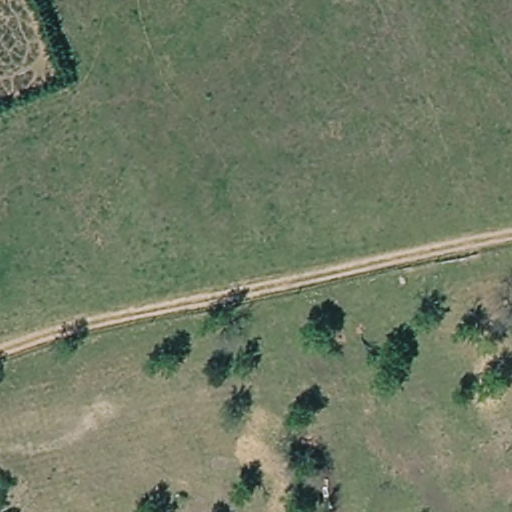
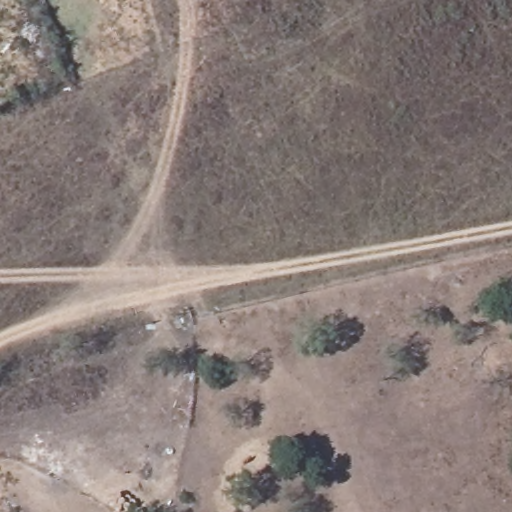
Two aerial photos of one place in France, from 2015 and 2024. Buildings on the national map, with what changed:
[]

